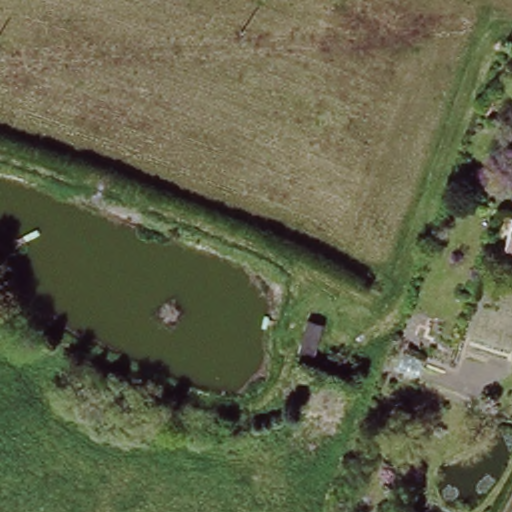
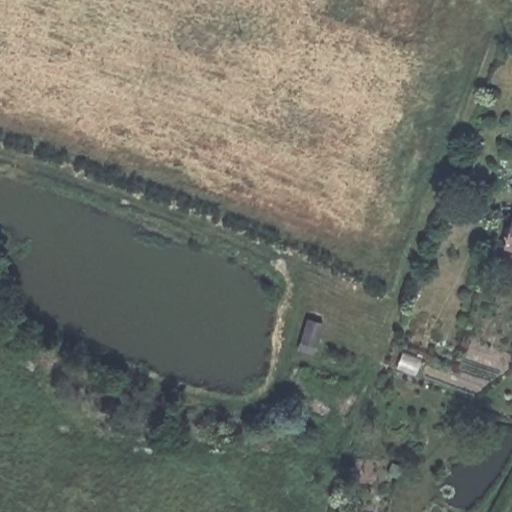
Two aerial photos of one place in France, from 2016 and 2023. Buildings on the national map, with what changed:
unchanged [(507,243),(503,241),(512,217),(512,245),(507,243)]
unchanged [(321,321),(316,349),(298,344),(304,314),(321,321)]

